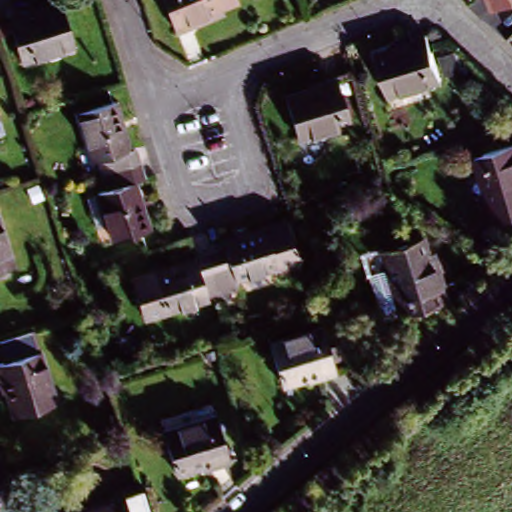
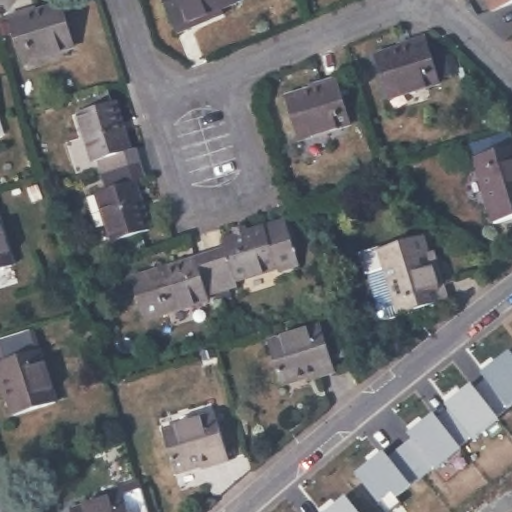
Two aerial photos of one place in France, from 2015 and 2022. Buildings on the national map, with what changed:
unchanged [(189,25),(192,31),(173,38),(158,0),(236,0),(238,6),(189,25)]
unchanged [(496,10),(500,6),(494,0),(512,0),(512,16),(507,21),(496,10)]
unchanged [(22,12),(24,17),(58,6),(72,48),(22,64),(7,16),(22,12)]
unchanged [(438,87),(386,105),(372,63),(400,54),(398,49),(409,46),(424,41),(438,87)]
unchanged [(315,87),(314,81),(332,76),(347,122),(293,139),(281,97),(315,87)]
unchanged [(91,160),(85,161),(70,114),(106,103),(120,150),(125,149),(129,165),(95,176),(91,160)]
unchanged [(490,226),(468,158),(512,143),(512,219),(490,226)]
unchanged [(95,176),(129,165),(134,181),(127,183),(142,231),(105,243),(90,195),(100,192),(95,176)]
unchanged [(227,244),(222,230),(265,217),(277,259),(236,271),(238,279),(220,285),(210,250),(227,244)]
unchanged [(0,269),(0,228),(12,266),(0,269)]
unchanged [(412,240),(425,287),(432,285),(437,302),(388,316),(371,251),(412,240)]
unchanged [(194,249),(195,254),(210,250),(220,285),(206,289),(208,293),(167,305),(153,262),(194,249)]
unchanged [(153,262),(167,305),(143,313),(140,297),(132,293),(135,286),(130,270),(153,262)]
unchanged [(315,326),(328,370),(313,375),(312,370),(275,382),(263,342),(315,326)]
unchanged [(53,402),(12,416),(0,380),(0,362),(37,351),(53,402)]
new [(509,409),(498,419),(437,469),(434,465),(396,498),(400,504),(389,512),(386,512),(379,502),(357,474),(385,452),(390,459),(414,439),(408,432),(433,412),(439,420),(450,411),(445,406),(472,384),(477,390),(487,379),(482,373),(511,352),(512,353),(512,407),(509,409)]
unchanged [(206,419),(220,463),(204,468),(202,464),(168,475),(157,434),(206,419)]
unchanged [(117,495),(123,512),(65,512),(65,511),(117,495)]
new [(347,496),(360,512),(326,512),(347,496)]

